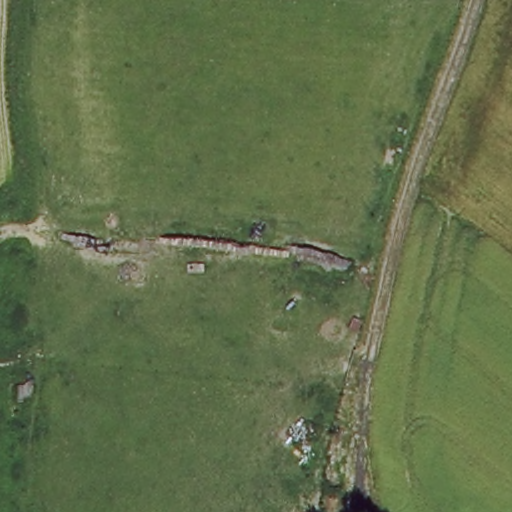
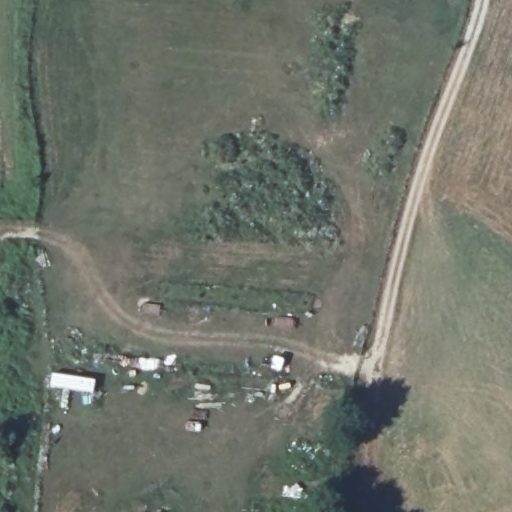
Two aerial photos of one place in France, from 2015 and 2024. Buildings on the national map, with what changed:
[]

